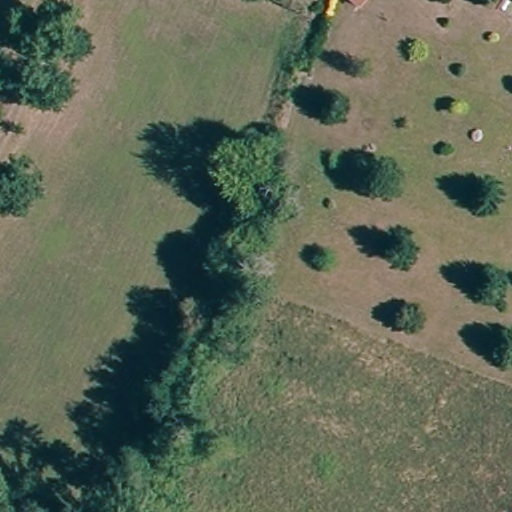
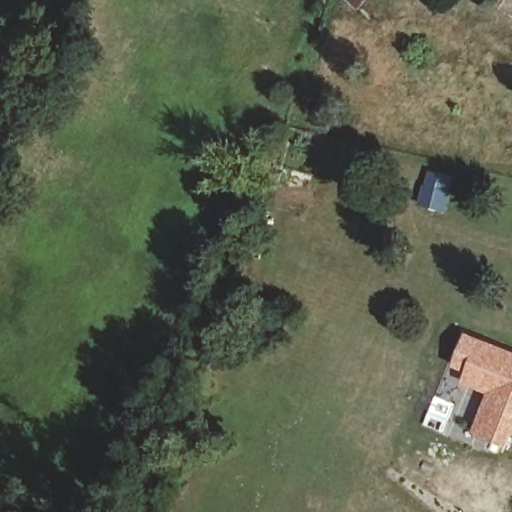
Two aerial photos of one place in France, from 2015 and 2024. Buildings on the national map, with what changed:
new [(348,0),(370,0),(362,10),(348,0)]
new [(512,350),(512,440),(509,447),(470,432),(486,393),(459,381),(464,371),(450,365),(465,330),(512,350)]

